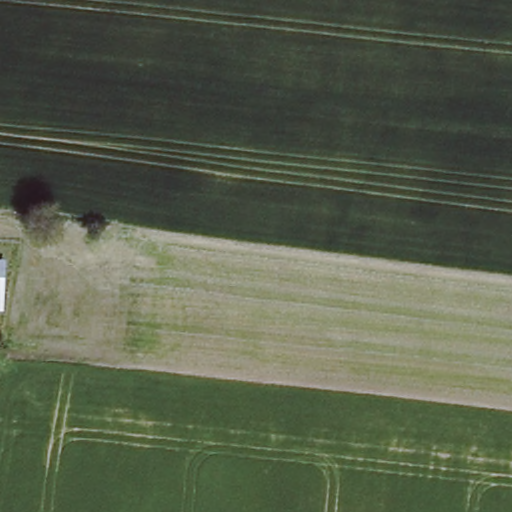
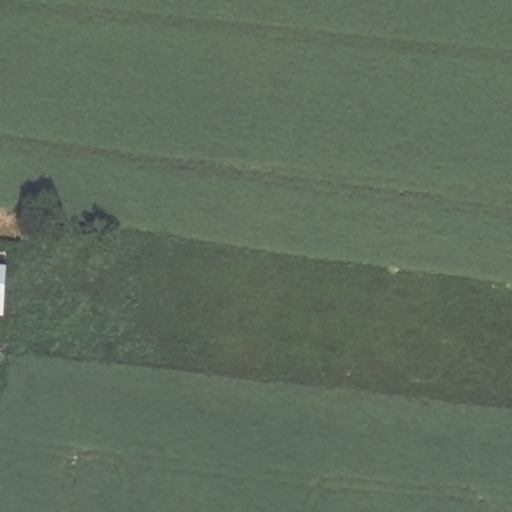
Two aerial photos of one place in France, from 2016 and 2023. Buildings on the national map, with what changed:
unchanged [(0,258),(13,259),(6,318),(0,318),(0,258)]

